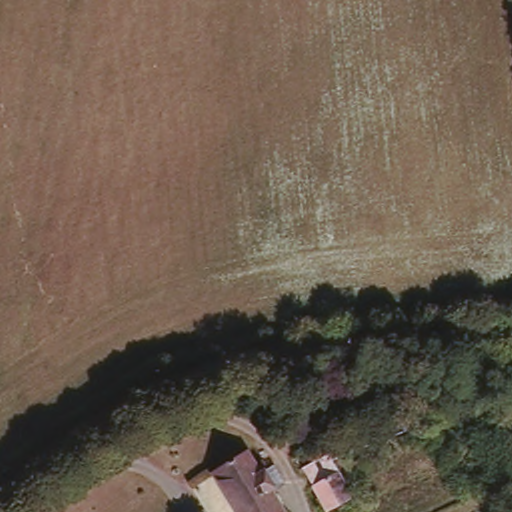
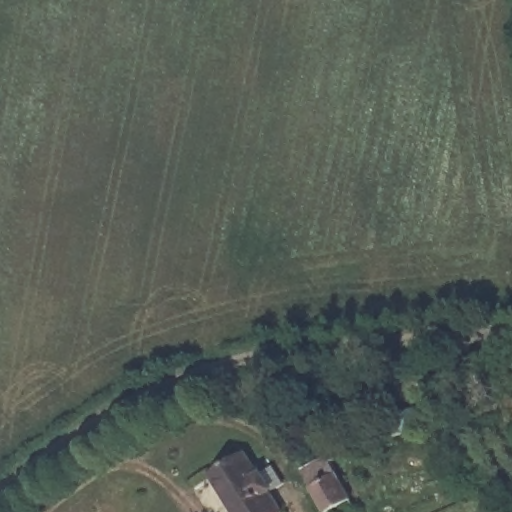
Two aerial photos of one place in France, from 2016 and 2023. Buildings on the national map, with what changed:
unchanged [(444,405),(452,421),(432,430),(424,415),(444,405)]
unchanged [(309,474),(303,461),(328,450),(341,442),(348,456),(334,462),(348,490),(324,502),(317,487),(309,474)]
unchanged [(259,470),(274,462),(284,480),(269,490),(280,510),(277,512),(241,512),(217,465),(247,448),(259,470)]

